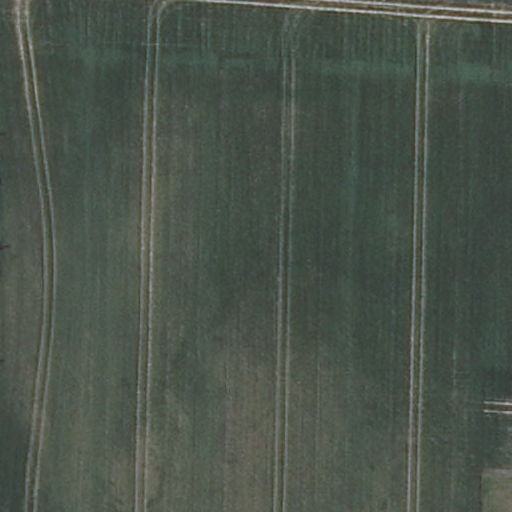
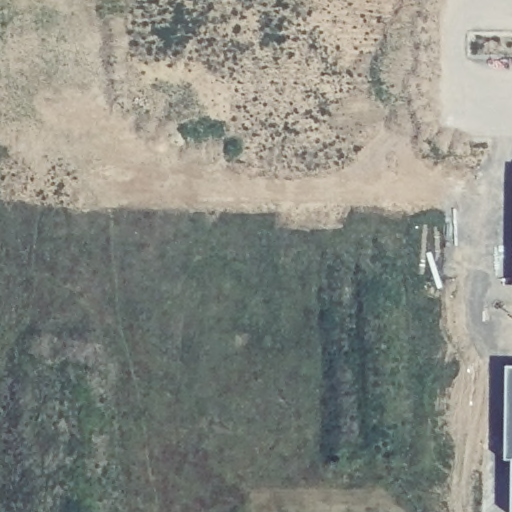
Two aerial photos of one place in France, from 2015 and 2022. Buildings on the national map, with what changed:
new [(508,462),(500,462),(503,371),(512,371),(512,512),(506,512),(508,462)]

